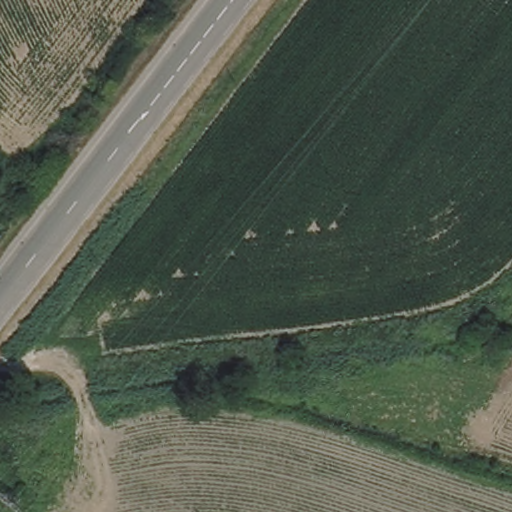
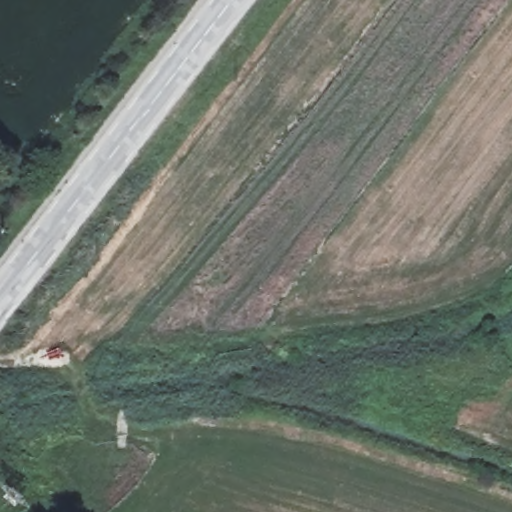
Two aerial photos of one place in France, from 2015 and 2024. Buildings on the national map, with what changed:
[]

